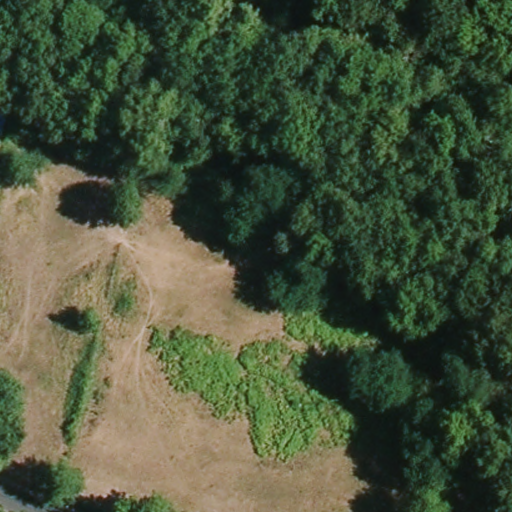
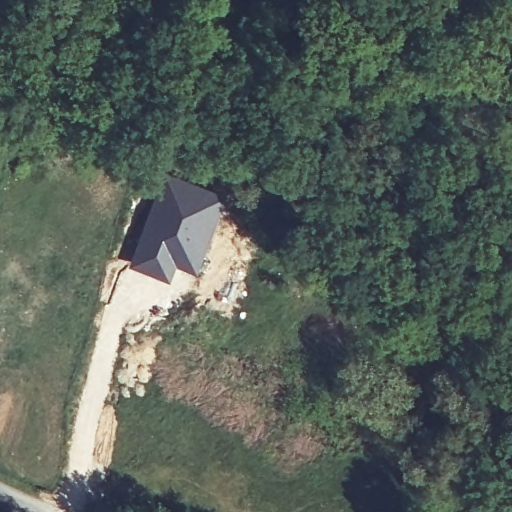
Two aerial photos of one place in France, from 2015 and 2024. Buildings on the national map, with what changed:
new [(158,190),(168,168),(230,192),(197,276),(179,268),(172,284),(128,268),(158,190)]

